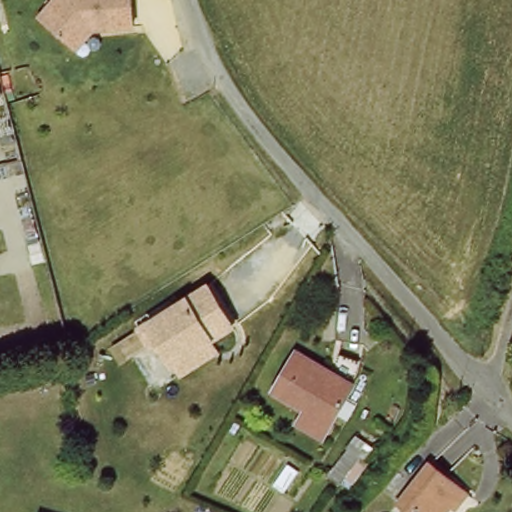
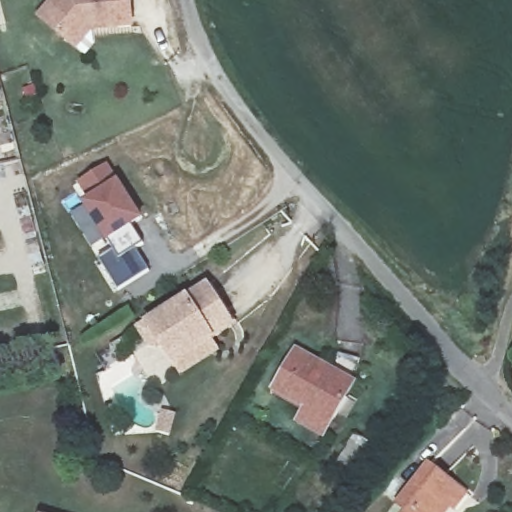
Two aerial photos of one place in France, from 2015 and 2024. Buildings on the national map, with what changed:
unchanged [(40,27),(61,0),(128,0),(132,31),(93,36),(78,56),(71,50),(40,27)]
new [(120,291),(101,259),(115,251),(108,243),(82,203),(90,198),(80,184),(109,163),(120,181),(145,220),(135,227),(145,244),(136,250),(150,271),(120,291)]
unchanged [(206,296),(234,335),(176,376),(163,358),(160,360),(151,358),(140,343),(206,296)]
unchanged [(330,426),(301,409),(304,407),(277,390),(298,350),(353,384),(330,426)]
unchanged [(452,512),(408,512),(410,510),(400,502),(435,461),(469,493),(452,512)]

